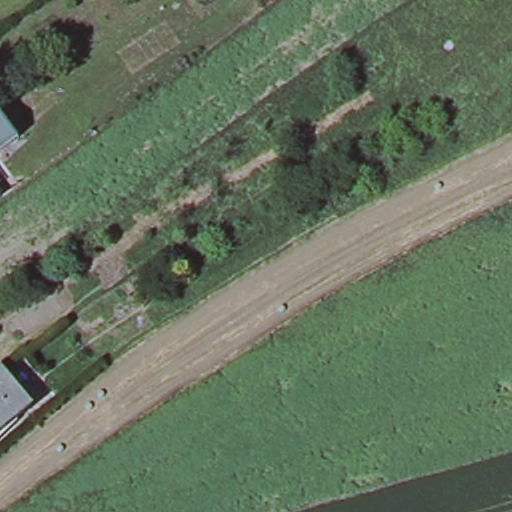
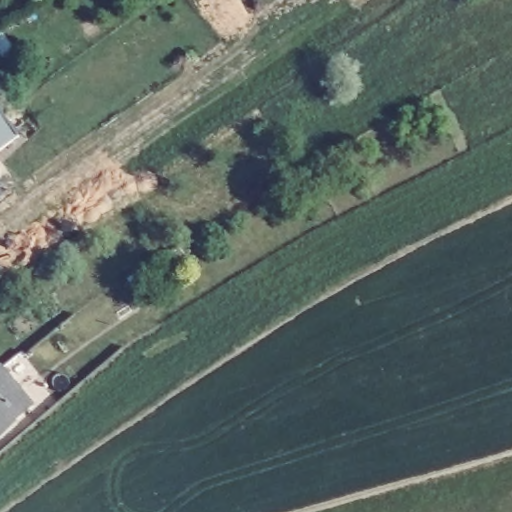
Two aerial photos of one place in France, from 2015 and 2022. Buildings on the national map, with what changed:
unchanged [(0,111),(18,136),(0,149),(0,111)]
unchanged [(34,404),(0,433),(0,370),(3,367),(7,372),(34,404)]

